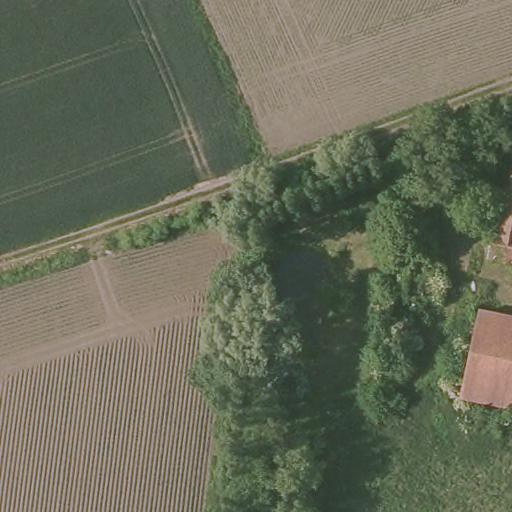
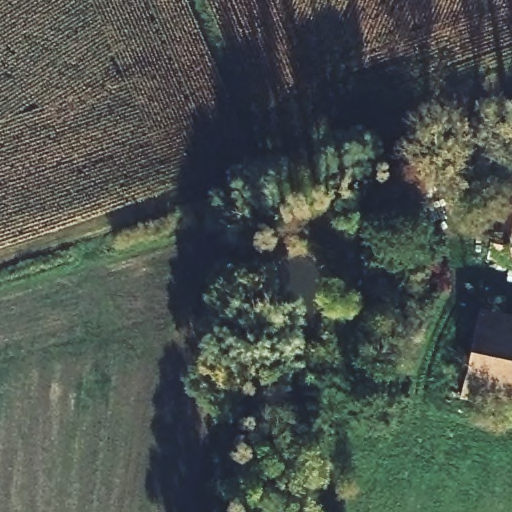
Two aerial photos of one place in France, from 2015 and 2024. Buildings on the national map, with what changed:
unchanged [(512,169),(512,263),(492,259),(512,169)]
unchanged [(407,262),(435,260),(437,313),(409,315),(407,262)]
unchanged [(460,398),(480,312),(512,320),(512,410),(463,399),(460,398)]

